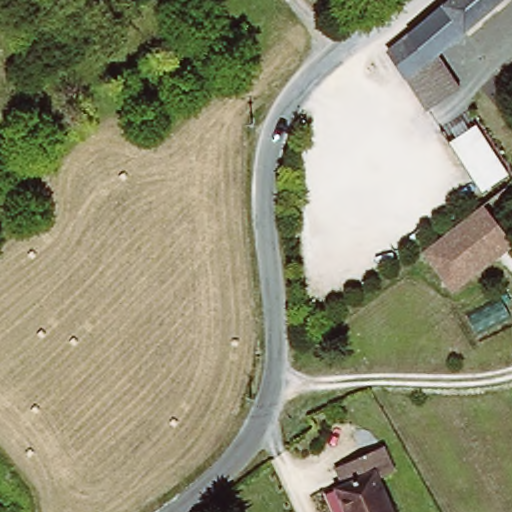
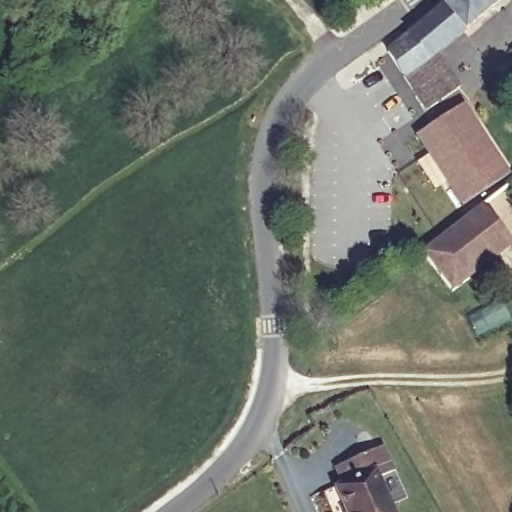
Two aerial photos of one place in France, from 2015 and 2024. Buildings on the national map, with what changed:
unchanged [(505,0),(465,35),(445,9),(455,0),(505,0)]
unchanged [(445,9),(465,35),(440,58),(409,38),(445,9)]
unchanged [(406,82),(385,54),(402,44),(409,38),(440,58),(464,88),(446,104),(435,113),(406,82)]
new [(465,104),(510,175),(461,207),(415,137),(465,104)]
demolished [(482,190),(448,141),(476,124),(509,175),(482,190)]
unchanged [(512,236),(512,245),(458,292),(423,252),(481,202),(512,236)]
unchanged [(384,478),(403,512),(339,512),(328,492),(346,482),(340,468),(383,447),(396,472),(384,478)]

